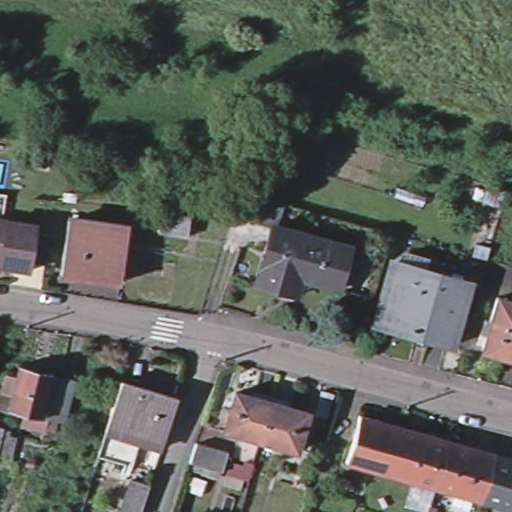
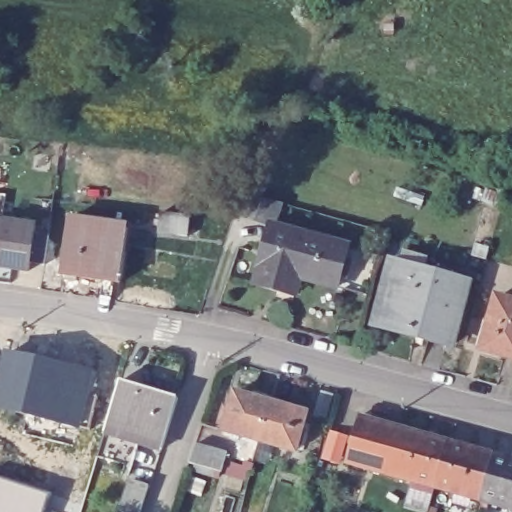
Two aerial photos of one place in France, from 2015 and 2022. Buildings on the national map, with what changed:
unchanged [(46,243),(43,262),(30,260),(29,269),(0,265),(0,259),(0,207),(4,207),(3,217),(36,222),(35,231),(48,233),(46,243)]
unchanged [(160,210),(190,213),(187,233),(158,229),(160,210)]
unchanged [(68,218),(126,226),(123,254),(64,246),(68,218)]
unchanged [(273,223),(349,244),(338,285),(301,275),(296,292),(257,281),(273,223)]
unchanged [(64,246),(123,254),(119,280),(60,272),(64,246)]
unchanged [(393,262),(442,277),(444,272),(467,279),(449,344),(424,337),(426,332),(378,318),(393,262)]
unchanged [(512,301),(512,351),(504,348),(503,354),(483,348),(497,296),(512,301)]
unchanged [(15,363),(73,377),(58,424),(3,417),(15,363)]
unchanged [(119,380),(174,397),(159,446),(104,430),(119,380)]
unchanged [(244,427),(231,424),(241,387),(276,397),(313,407),(302,444),(266,434),(259,456),(238,450),(244,427)]
unchanged [(348,462),(361,416),(402,428),(389,474),(348,462)]
unchanged [(389,474),(402,428),(449,441),(436,488),(389,474)]
unchanged [(196,456),(203,436),(233,447),(228,465),(196,456)]
unchanged [(436,488),(449,441),(494,454),(482,501),(436,488)]
unchanged [(494,454),(512,460),(512,510),(482,501),(494,454)]
new [(49,490),(42,512),(0,512),(0,474),(49,490)]
unchanged [(131,475),(148,481),(138,511),(120,505),(131,475)]

